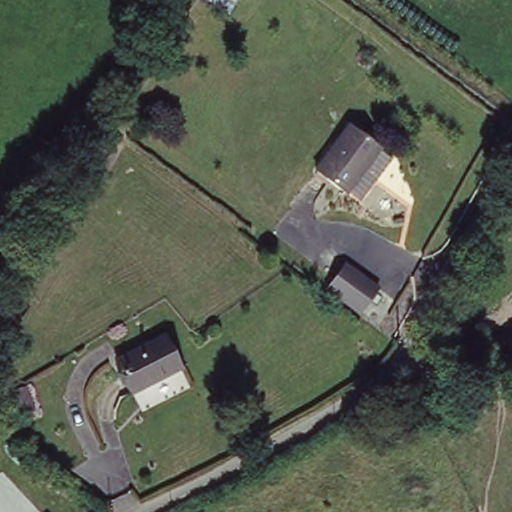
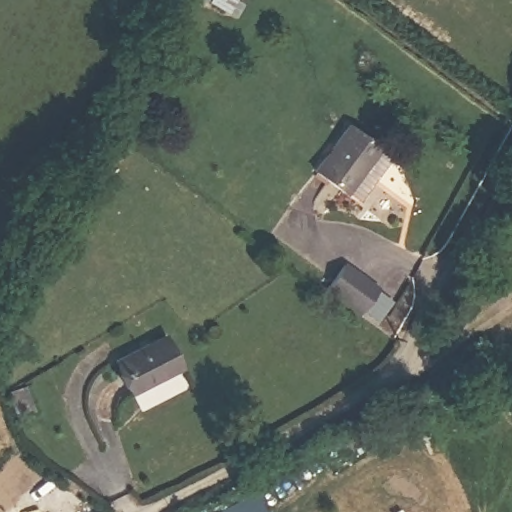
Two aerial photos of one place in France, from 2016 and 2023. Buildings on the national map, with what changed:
unchanged [(232,12),(206,0),(239,0),(232,12)]
unchanged [(309,164),(342,116),(377,139),(374,144),(343,189),(309,164)]
unchanged [(374,144),(392,155),(360,200),(343,189),(374,144)]
unchanged [(360,315),(325,289),(345,262),(381,288),(360,315)]
unchanged [(166,332),(186,370),(133,396),(113,359),(166,332)]

